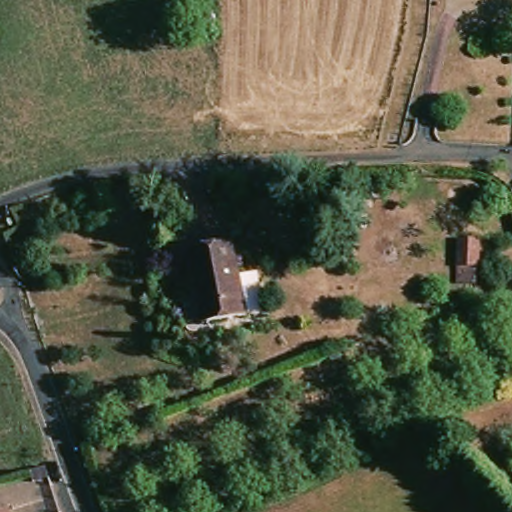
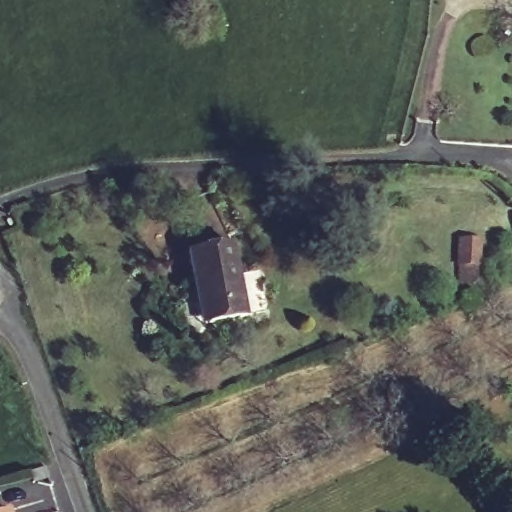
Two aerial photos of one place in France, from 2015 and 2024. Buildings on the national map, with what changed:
unchanged [(200,13),(218,13),(218,31),(200,31),(200,13)]
unchanged [(460,243),(468,269),(450,276),(440,250),(460,243)]
unchanged [(192,285),(185,256),(227,246),(243,318),(210,323),(200,325),(192,285)]

